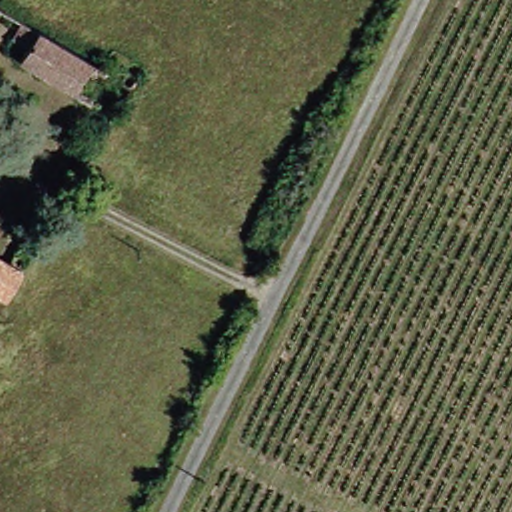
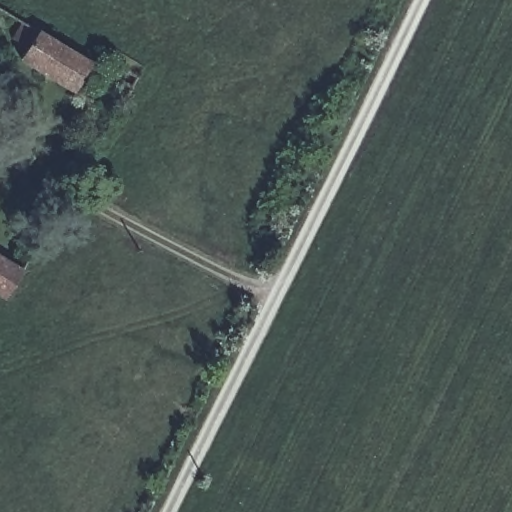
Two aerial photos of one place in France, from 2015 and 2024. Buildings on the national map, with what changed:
unchanged [(7,18),(67,54),(69,49),(72,46),(103,65),(80,103),(69,95),(0,54),(0,29),(7,18)]
unchanged [(1,260),(0,262),(0,259),(1,260)]
unchanged [(7,276),(0,289),(0,271),(7,276)]

